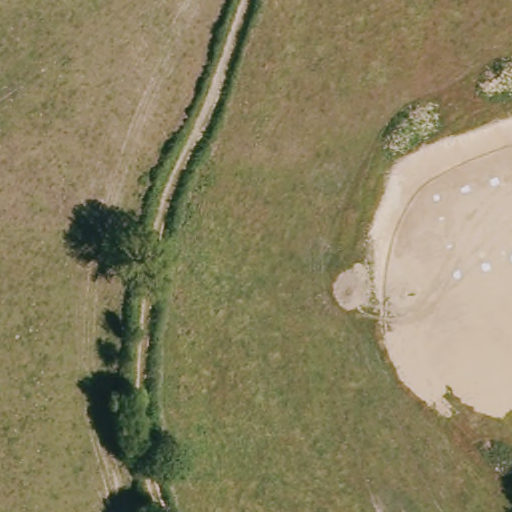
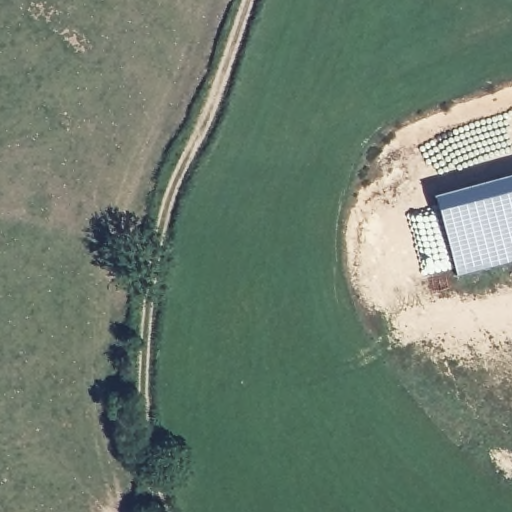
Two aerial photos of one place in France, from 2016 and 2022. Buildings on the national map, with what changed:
new [(436,195),(512,175),(512,259),(455,275),(436,195)]

